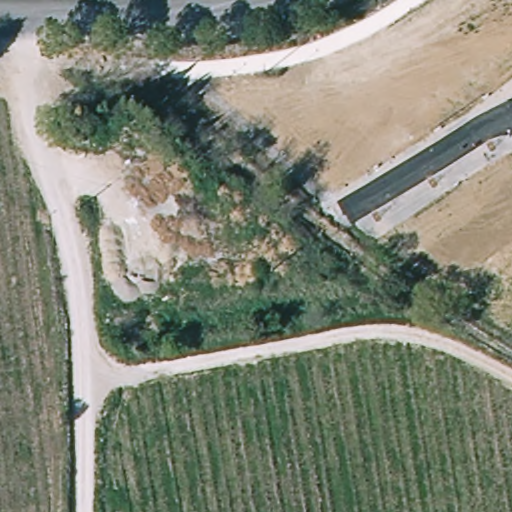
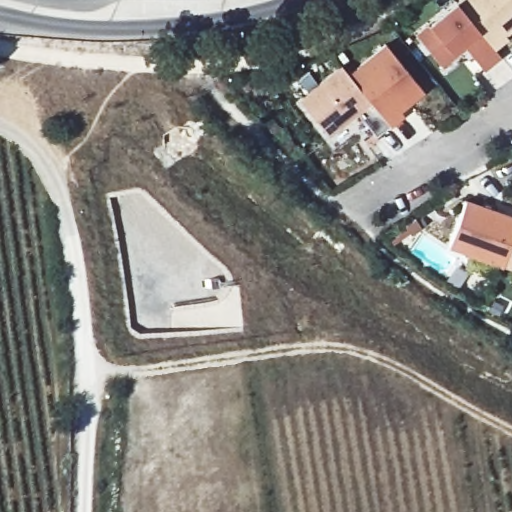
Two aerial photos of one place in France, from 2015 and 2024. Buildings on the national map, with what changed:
unchanged [(512,0),(512,32),(507,36),(511,41),(498,52),(461,8),(470,0),(512,0)]
new [(442,66),(420,40),(460,7),(461,8),(498,52),(505,60),(489,74),(469,51),(446,70),(442,66)]
new [(384,44),(423,91),(400,110),(404,115),(390,126),(347,74),(384,44)]
unchanged [(345,72),(393,130),(380,141),(360,117),(331,140),(304,106),(345,72)]
new [(512,219),(512,257),(508,268),(453,249),(469,204),(512,219)]
new [(512,257),(512,270),(508,268),(512,257)]

